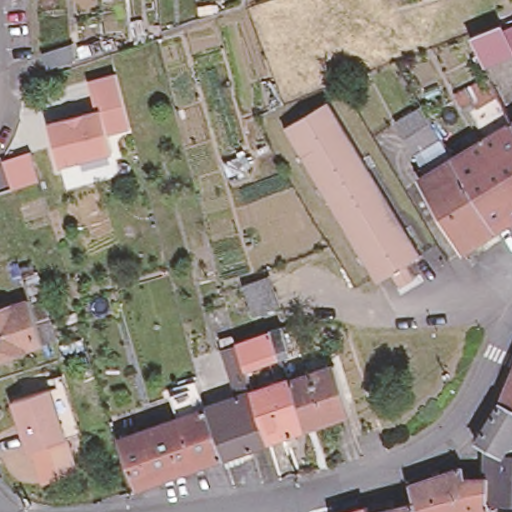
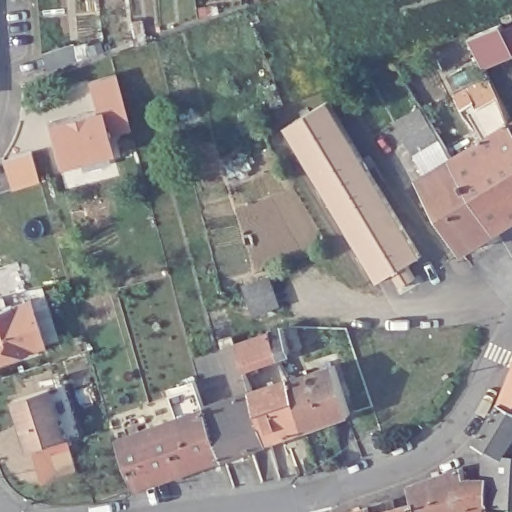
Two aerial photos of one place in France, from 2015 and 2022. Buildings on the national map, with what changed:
unchanged [(506,5),(508,11),(497,16),(495,10),(506,5)]
unchanged [(500,22),(512,17),(512,45),(480,58),(467,29),(497,16),(500,22)]
unchanged [(79,55),(52,65),(47,48),(77,37),(79,55)]
unchanged [(131,123),(108,129),(113,147),(60,160),(49,119),(97,106),(89,77),(117,70),(131,123)]
unchanged [(509,114),(481,131),(463,98),(470,95),(463,83),(486,70),(509,114)]
unchanged [(397,276),(388,265),(375,273),(299,150),(280,119),(285,115),(323,92),(419,246),(405,255),(412,266),(397,276)]
unchanged [(448,150),(422,166),(393,114),(418,100),(448,150)]
unchanged [(512,112),(512,118),(509,114),(512,112)]
unchanged [(481,131),(509,114),(512,118),(512,175),(481,131)]
unchanged [(448,150),(481,131),(512,175),(512,212),(492,223),(448,150)]
unchanged [(415,171),(422,166),(448,150),(492,223),(458,243),(415,171)]
unchanged [(10,192),(5,176),(2,163),(5,162),(27,155),(32,153),(36,167),(40,182),(10,192)]
unchanged [(14,262),(30,258),(50,337),(0,356),(0,303),(22,297),(14,262)]
unchanged [(270,271),(282,301),(255,312),(244,281),(270,271)]
unchanged [(225,453),(136,484),(119,435),(201,406),(199,400),(204,399),(206,405),(238,393),(220,336),(233,332),(237,340),(240,338),(272,327),(282,324),(285,328),(290,346),(279,350),(246,363),(254,388),(291,375),(336,360),(353,410),(307,425),(270,438),(242,447),(246,457),(228,465),(225,453)]
unchanged [(499,451),(484,445),(472,440),(499,398),(512,365),(512,431),(499,451)]
unchanged [(23,423),(20,423),(8,397),(44,382),(53,378),(57,377),(73,423),(69,426),(62,431),(30,443),(23,423)]
unchanged [(499,451),(512,452),(512,500),(485,497),(485,472),(484,451),(499,451)]
unchanged [(457,465),(463,475),(485,472),(485,497),(489,508),(476,512),(415,512),(411,498),(407,480),(457,465)]
unchanged [(415,512),(365,512),(365,510),(411,498),(415,512)]
unchanged [(365,510),(365,512),(335,512),(363,503),(365,510)]

